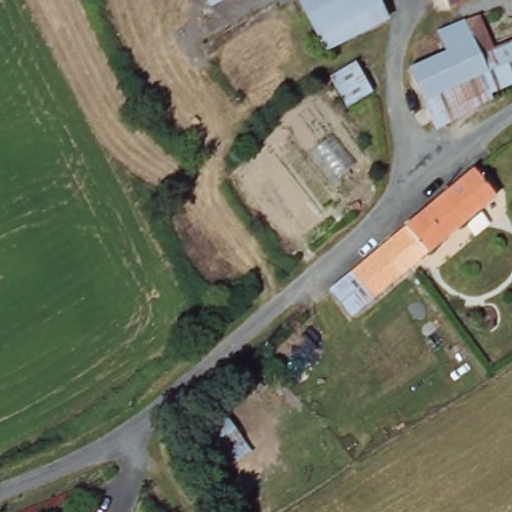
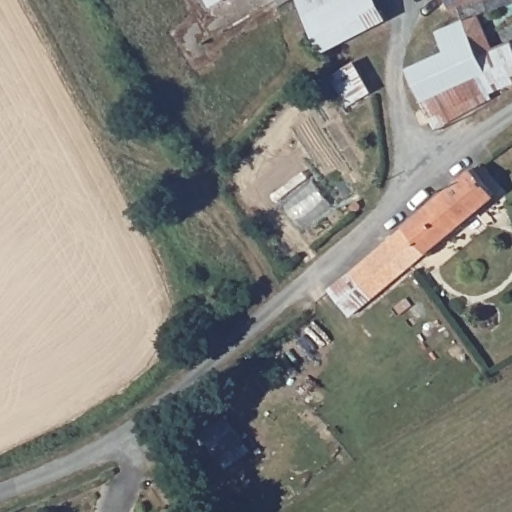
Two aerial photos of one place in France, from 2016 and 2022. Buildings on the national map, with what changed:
unchanged [(205,0),(217,0),(208,5),(205,0)]
unchanged [(276,0),(293,0),(281,6),(276,0)]
unchanged [(323,51),(294,0),(375,0),(387,20),(323,51)]
unchanged [(473,0),(456,6),(448,9),(445,0),(473,0)]
unchanged [(456,26),(462,23),(472,21),(480,18),(491,51),(512,42),(512,85),(489,96),(492,103),(436,128),(407,71),(448,55),(440,33),(456,26)]
unchanged [(355,61),(372,92),(346,109),(327,78),(355,61)]
unchanged [(474,177),(477,180),(495,201),(352,317),(345,309),(333,294),(474,177)]

